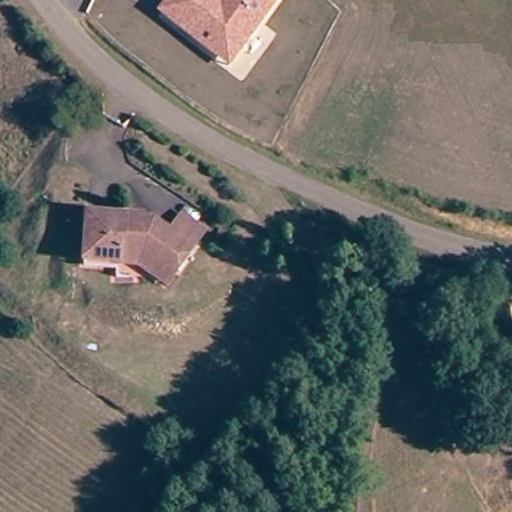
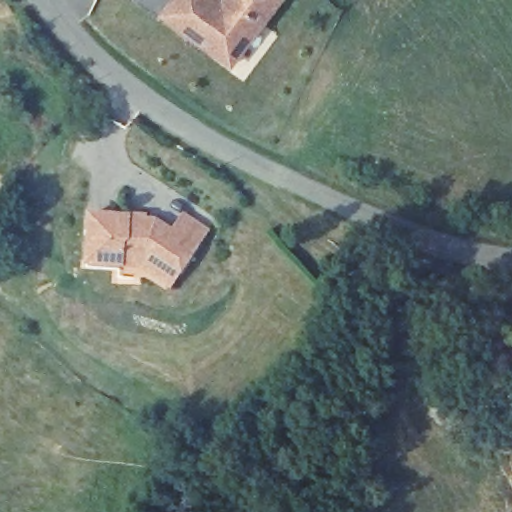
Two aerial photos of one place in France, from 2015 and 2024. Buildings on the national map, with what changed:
unchanged [(215,54),(167,18),(181,0),(217,0),(226,7),(232,0),(288,0),(241,61),(235,69),(215,54)]
unchanged [(135,266),(80,258),(87,208),(120,212),(121,217),(144,221),(160,232),(170,219),(195,236),(185,250),(169,271),(160,285),(135,266)]

